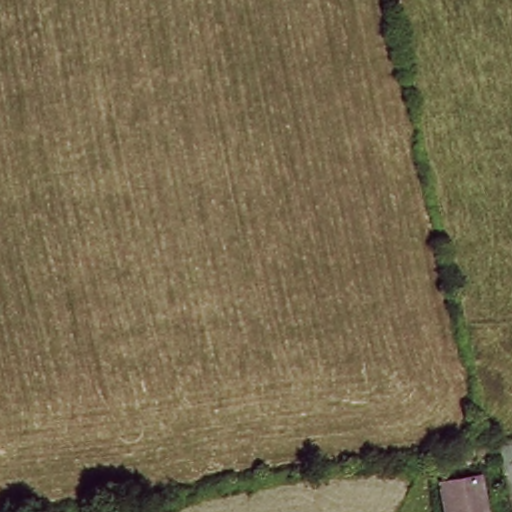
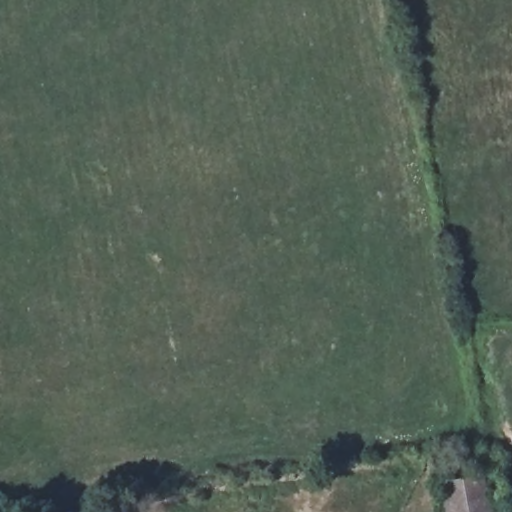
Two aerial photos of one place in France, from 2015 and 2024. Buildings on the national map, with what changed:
unchanged [(484,471),(491,512),(450,512),(444,477),(484,471)]

